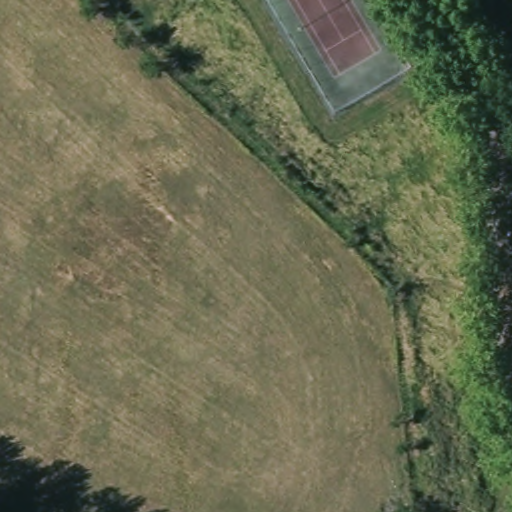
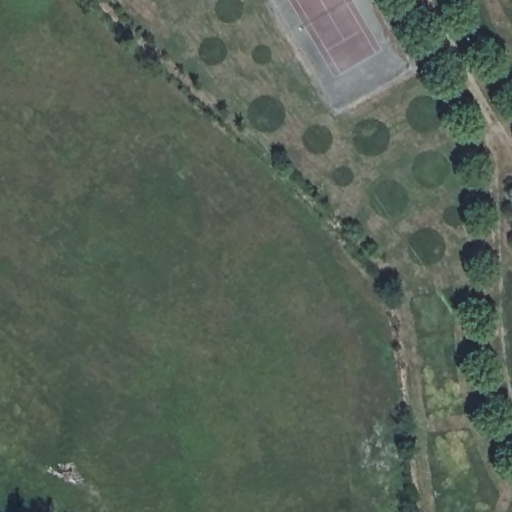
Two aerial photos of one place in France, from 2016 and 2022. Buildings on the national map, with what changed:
[]

